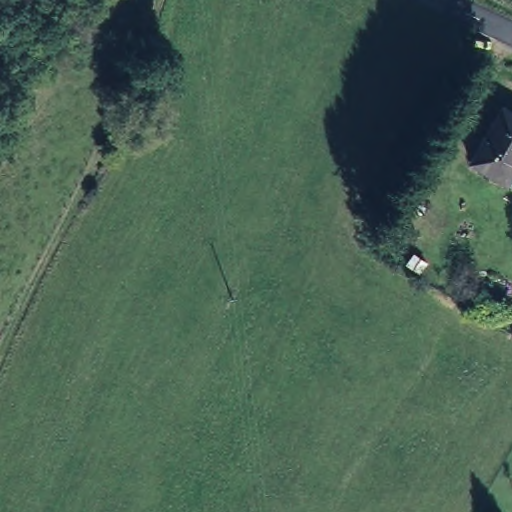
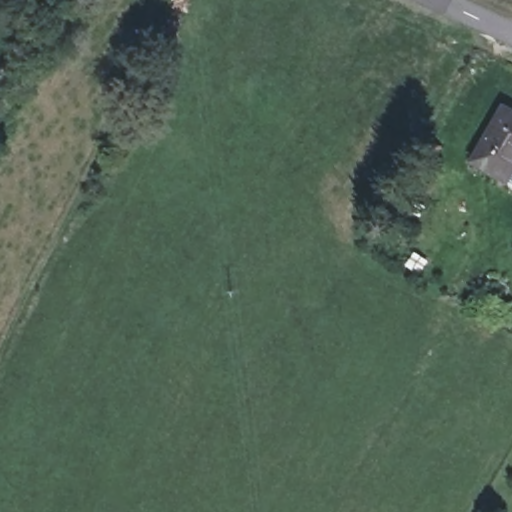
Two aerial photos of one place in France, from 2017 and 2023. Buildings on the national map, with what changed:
unchanged [(512,149),(500,174),(467,160),(494,103),(512,112),(512,149)]

